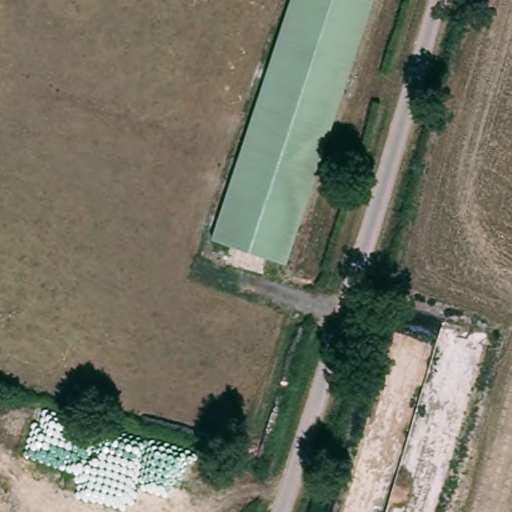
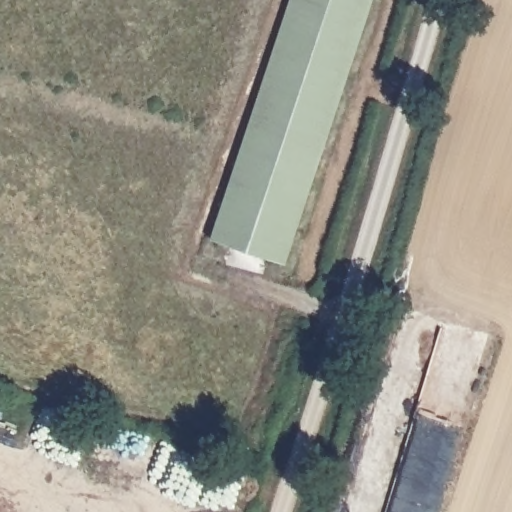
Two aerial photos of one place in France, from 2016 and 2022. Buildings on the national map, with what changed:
unchanged [(203,239),(288,0),(370,0),(276,265),(203,239)]

